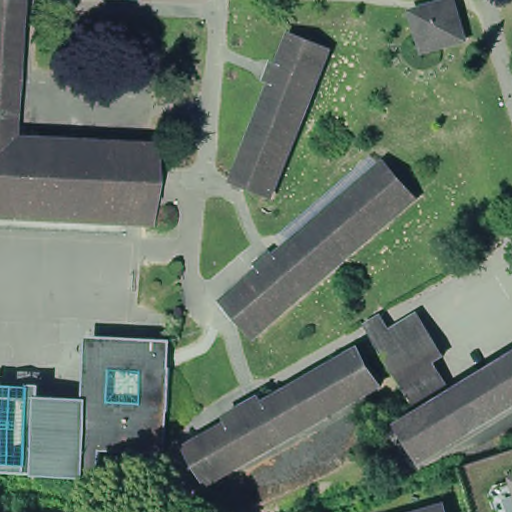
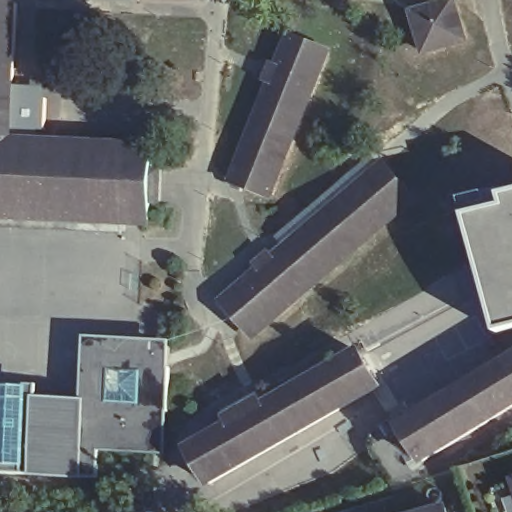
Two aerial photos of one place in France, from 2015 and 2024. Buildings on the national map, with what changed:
unchanged [(467,40),(425,53),(413,12),(454,0),(456,0),(467,40)]
unchanged [(0,139),(0,1),(17,2),(10,140),(7,140),(0,139)]
unchanged [(270,200),(232,186),(272,88),(265,86),(273,68),(279,70),(291,40),(327,55),(270,200)]
unchanged [(10,140),(152,146),(151,167),(161,169),(158,202),(149,202),(147,225),(120,223),(119,235),(0,228),(0,139),(7,140),(10,140)]
unchanged [(252,340),(234,317),(229,320),(217,306),(232,294),(234,296),(261,273),(257,268),(271,256),(275,261),(385,169),(414,202),(252,340)]
new [(494,329),(462,210),(500,200),(497,189),(512,185),(512,324),(494,329)]
unchanged [(37,396),(85,399),(88,338),(172,343),(168,486),(0,479),(0,386),(39,388),(37,396)]
unchanged [(381,390),(211,488),(190,455),(232,430),(226,422),(262,402),(267,410),(361,356),(381,390)]
unchanged [(426,466),(405,432),(512,365),(512,412),(426,466)]
unchanged [(424,512),(445,505),(447,512),(424,512)]

